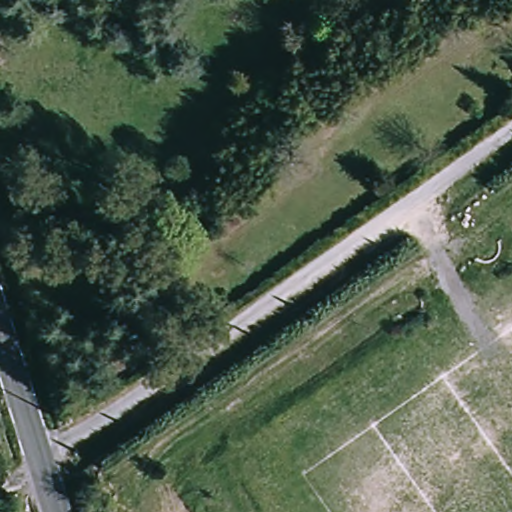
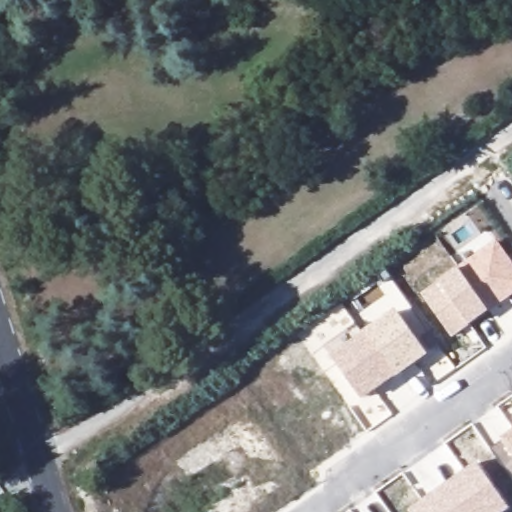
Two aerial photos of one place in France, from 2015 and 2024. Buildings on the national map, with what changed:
new [(469,327),(453,338),(421,295),(440,281),(460,267),(497,240),(512,261),(512,296),(490,312),(469,327)]
new [(364,400),(332,356),(364,333),(396,311),(430,355),(397,379),(364,400)]
new [(503,440),(502,439),(512,432),(512,481),(511,482),(490,451),(503,440)]
new [(506,512),(412,512),(411,511),(478,463),(511,509),(506,512)]

